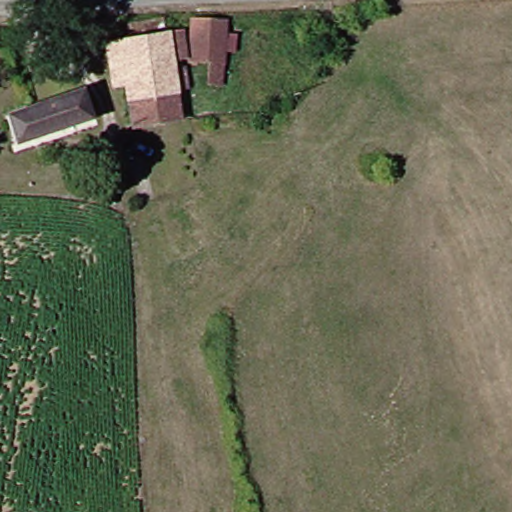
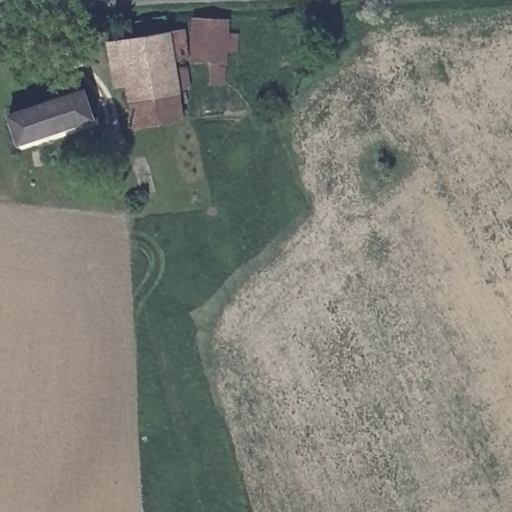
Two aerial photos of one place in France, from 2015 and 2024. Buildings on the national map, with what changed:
unchanged [(217,64),(199,64),(200,24),(228,24),(228,86),(220,87),(217,64)]
unchanged [(184,31),(190,52),(176,55),(189,116),(143,132),(125,45),(184,31)]
unchanged [(93,121),(16,144),(10,116),(45,105),(87,94),(93,121)]

